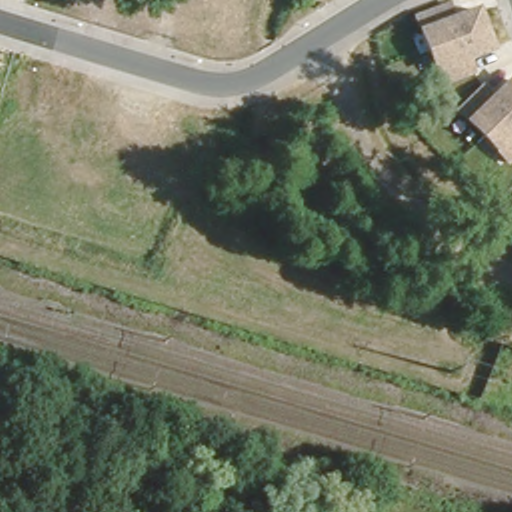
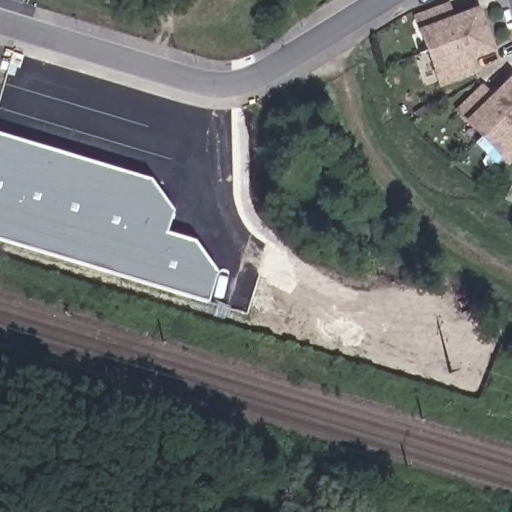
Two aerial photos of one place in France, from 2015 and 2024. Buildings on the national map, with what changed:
unchanged [(495,52),(474,59),(478,72),(441,86),(433,72),(416,26),(413,14),(447,2),(451,14),(478,6),(495,52)]
unchanged [(479,85),(490,96),(511,76),(512,77),(512,162),(509,165),(496,153),(463,122),(453,111),(479,85)]
new [(150,179),(173,212),(168,233),(197,242),(217,274),(208,303),(0,241),(0,133),(150,179)]

